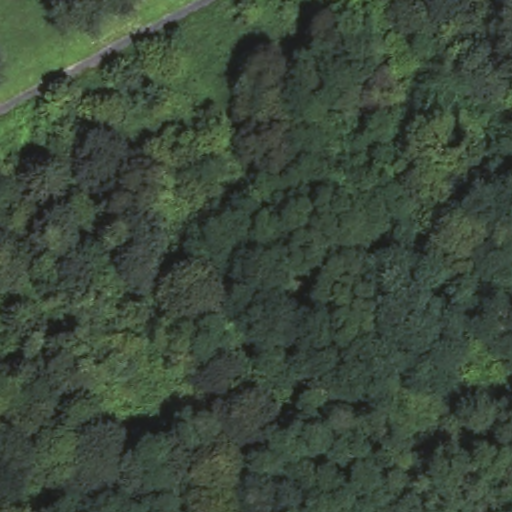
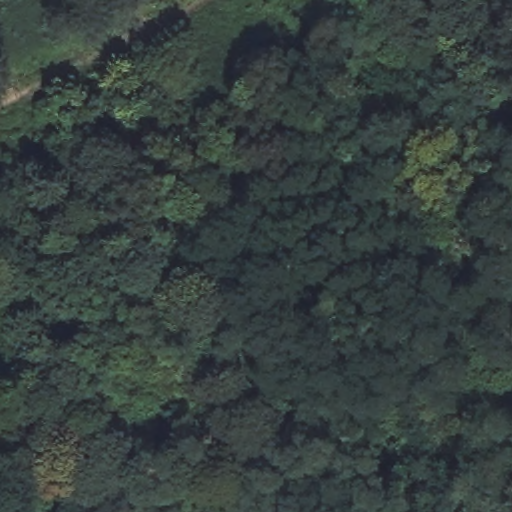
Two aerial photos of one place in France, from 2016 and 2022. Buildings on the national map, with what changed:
[]

